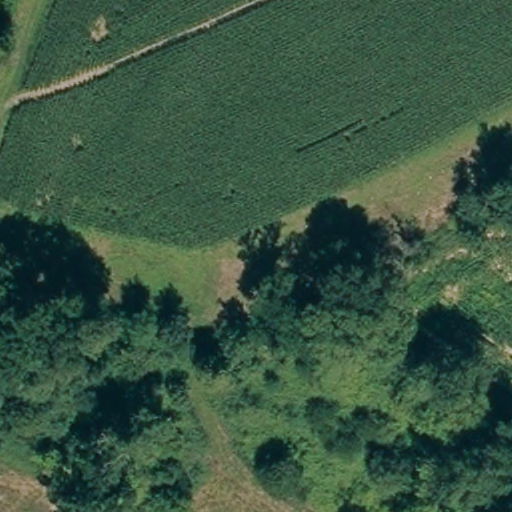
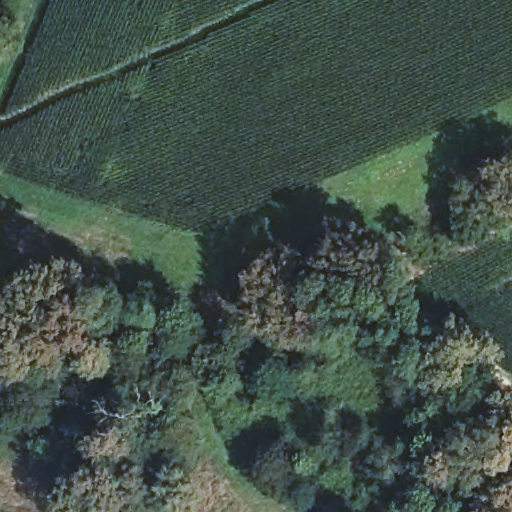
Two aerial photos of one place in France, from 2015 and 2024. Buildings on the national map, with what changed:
[]

